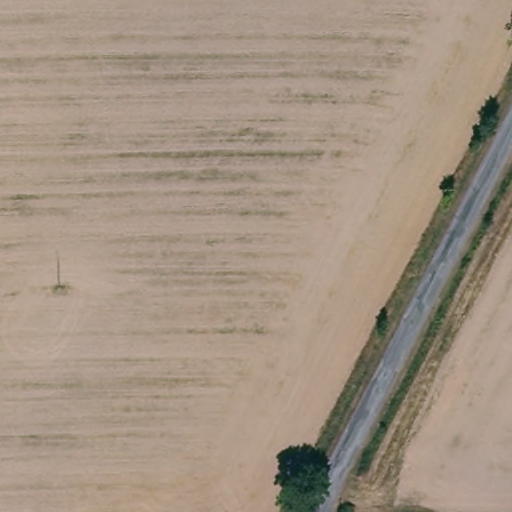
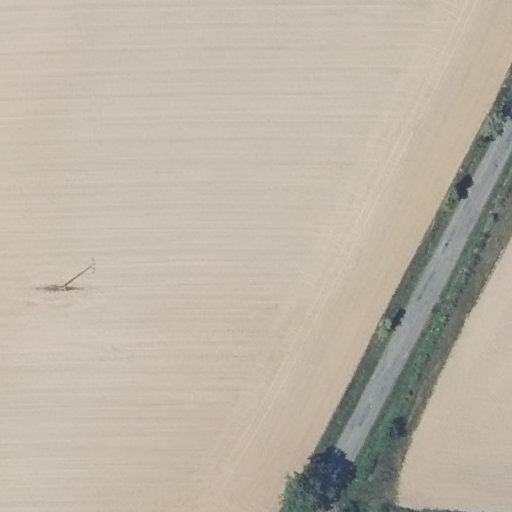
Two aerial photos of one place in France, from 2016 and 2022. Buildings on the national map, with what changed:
[]

